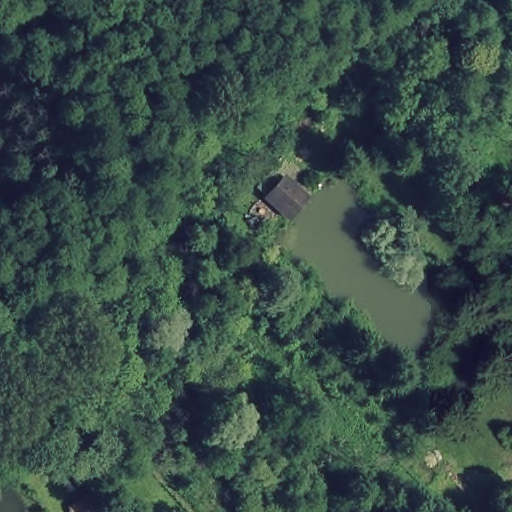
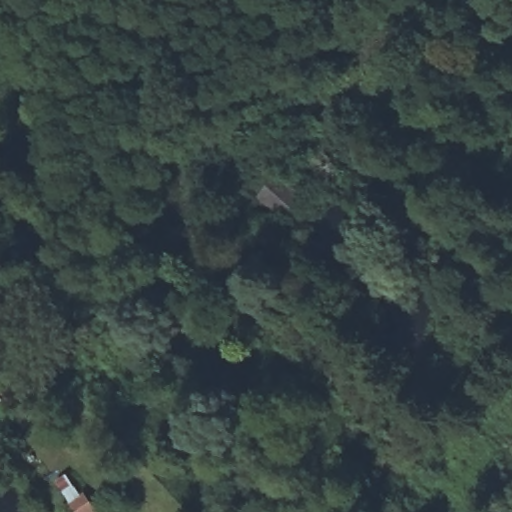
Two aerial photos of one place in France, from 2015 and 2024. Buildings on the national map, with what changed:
unchanged [(286,221),(260,196),(281,171),(306,194),(286,221)]
unchanged [(103,512),(68,512),(63,504),(85,487),(103,512)]

